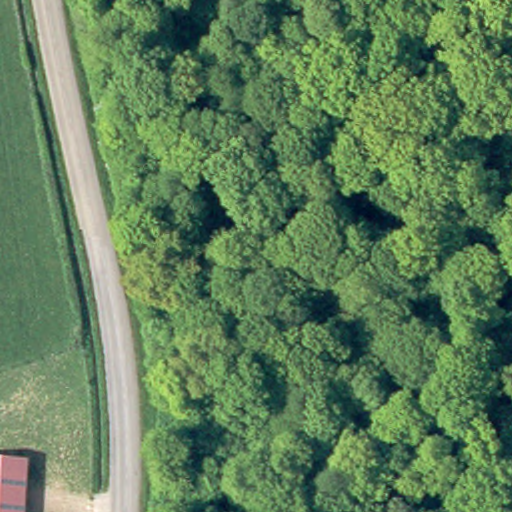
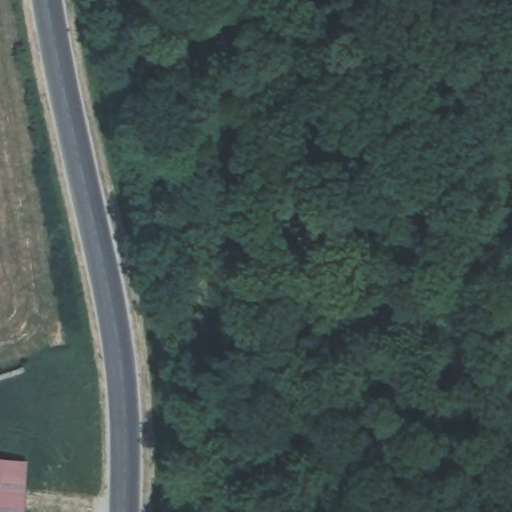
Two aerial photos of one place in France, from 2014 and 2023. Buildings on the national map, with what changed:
unchanged [(23,512),(0,512),(0,464),(23,465),(23,512)]

